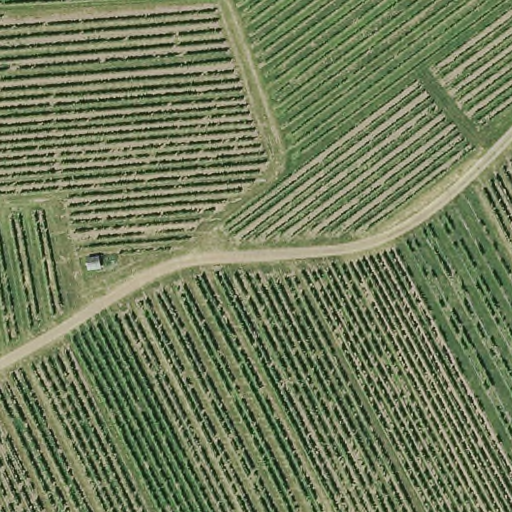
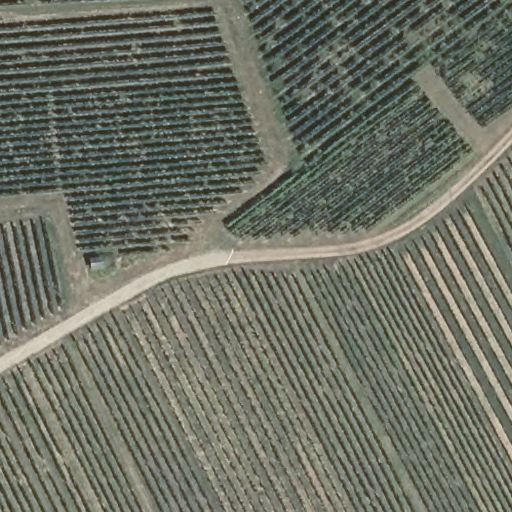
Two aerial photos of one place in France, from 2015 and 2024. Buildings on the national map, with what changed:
unchanged [(85,275),(84,263),(103,262),(104,274),(85,275)]

